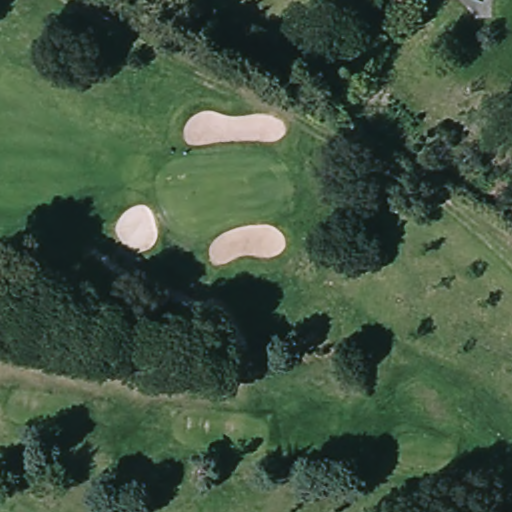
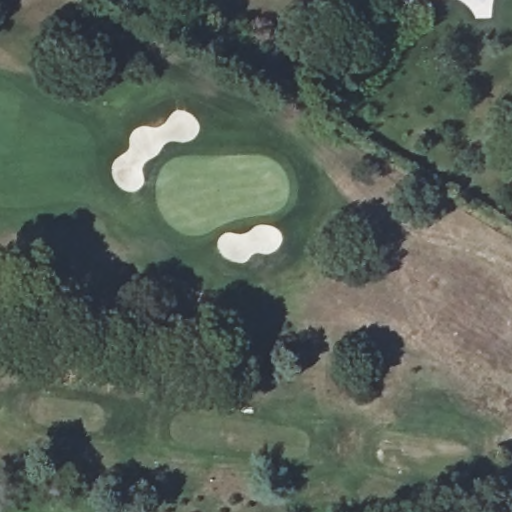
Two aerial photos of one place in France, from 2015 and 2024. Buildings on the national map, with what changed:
[]

